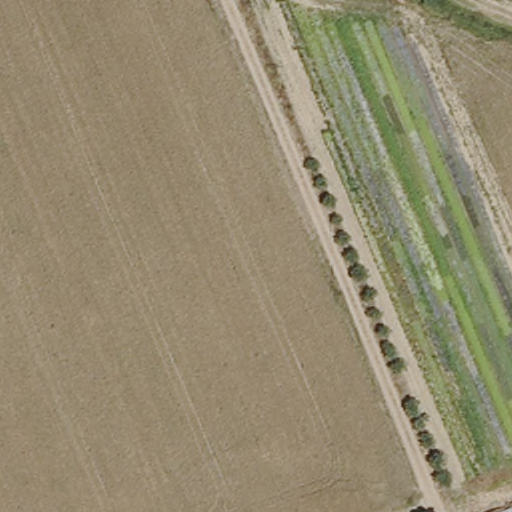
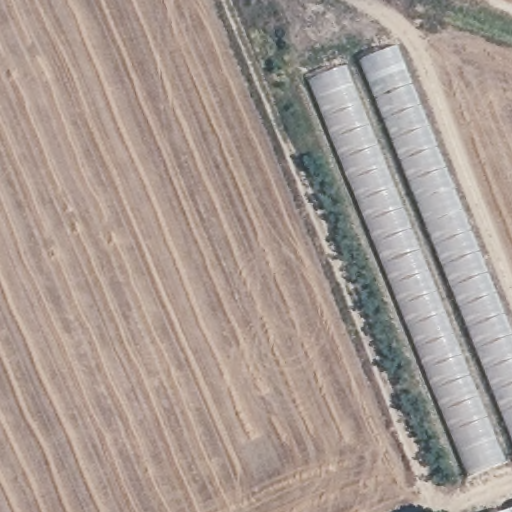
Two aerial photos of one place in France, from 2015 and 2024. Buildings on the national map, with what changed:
new [(467,480),(309,80),(353,63),(349,52),(387,37),(512,345),(512,462),(467,480)]
unchanged [(506,512),(512,510),(512,512),(506,512)]

